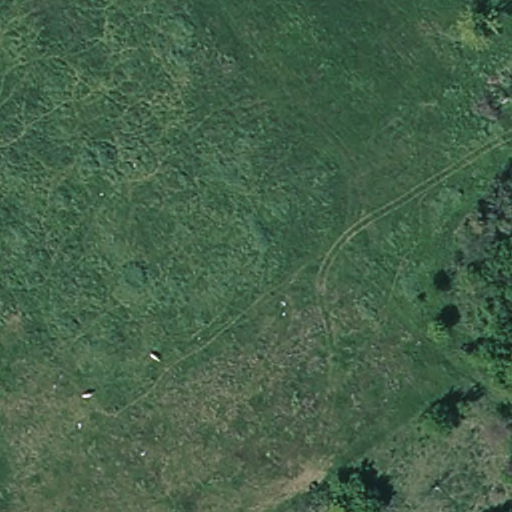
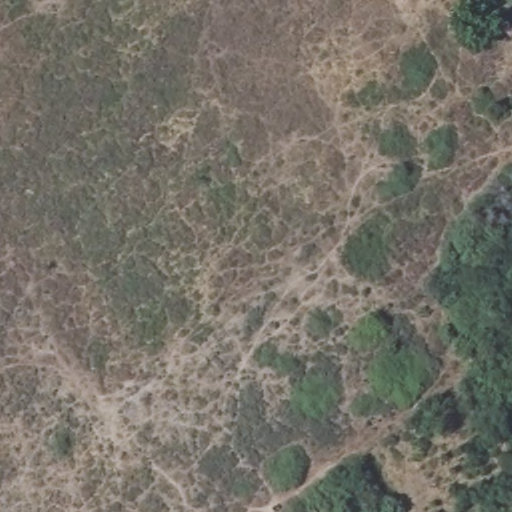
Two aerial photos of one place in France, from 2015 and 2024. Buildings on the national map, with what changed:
unchanged [(335,512),(312,512),(312,511),(330,501),(336,511),(335,512)]

